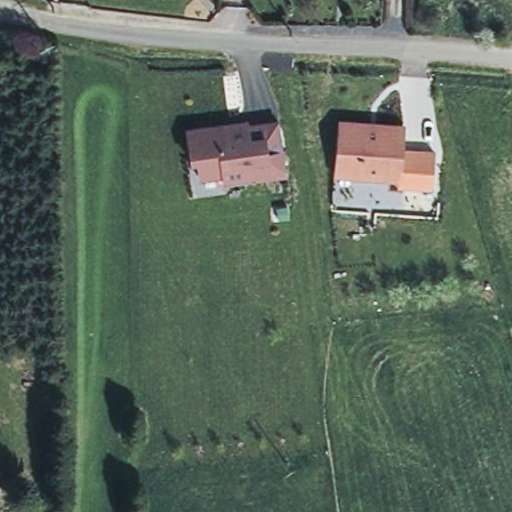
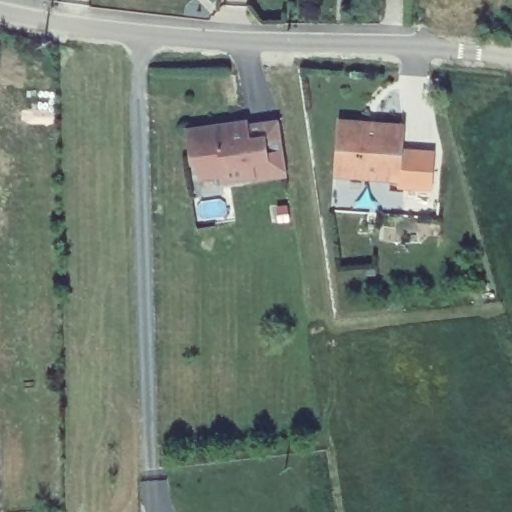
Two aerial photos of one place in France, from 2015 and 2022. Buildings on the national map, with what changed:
unchanged [(405,124),(403,149),(435,150),(434,189),(400,187),(400,178),(336,174),(340,119),(405,124)]
unchanged [(247,121),(248,125),(280,121),(287,174),(255,178),(255,175),(223,179),(222,174),(198,176),(196,159),(190,159),(186,129),(247,121)]

